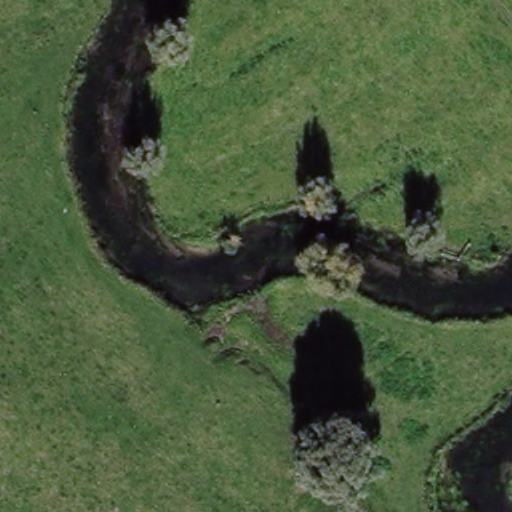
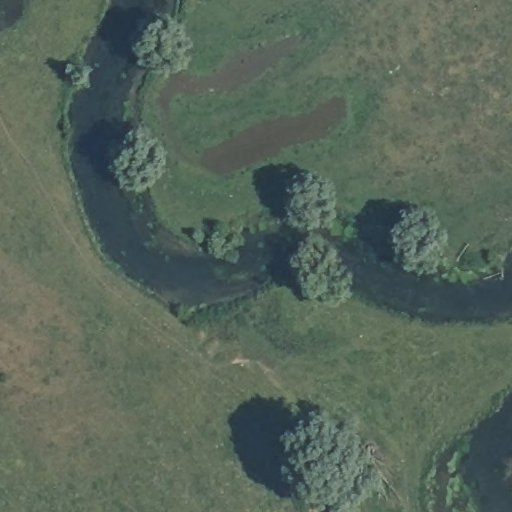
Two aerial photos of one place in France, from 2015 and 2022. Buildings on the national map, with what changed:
[]

